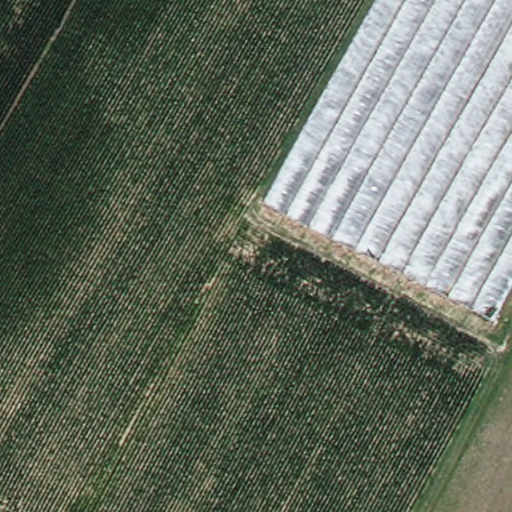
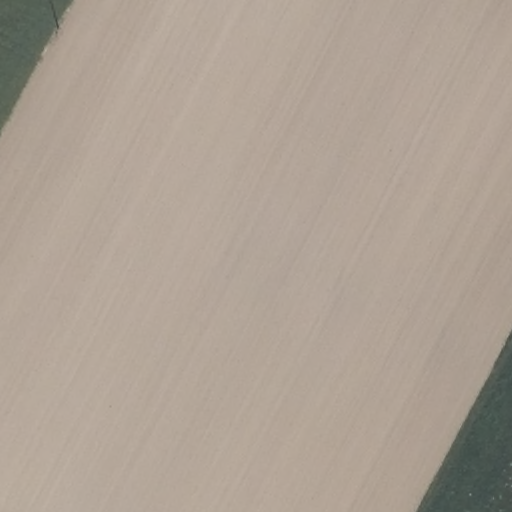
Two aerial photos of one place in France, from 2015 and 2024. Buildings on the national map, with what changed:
demolished [(493,315),(272,202),(381,0),(512,0),(512,282),(493,315)]

